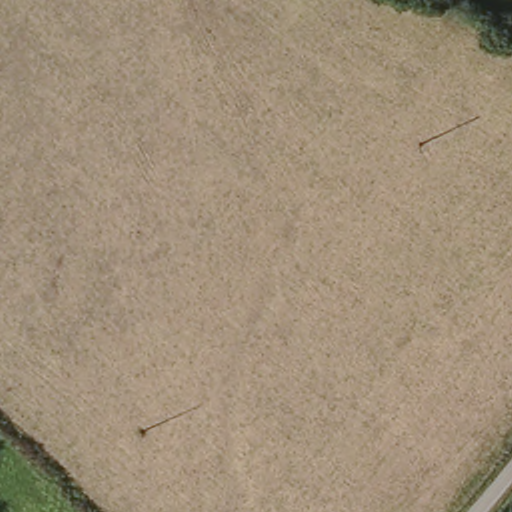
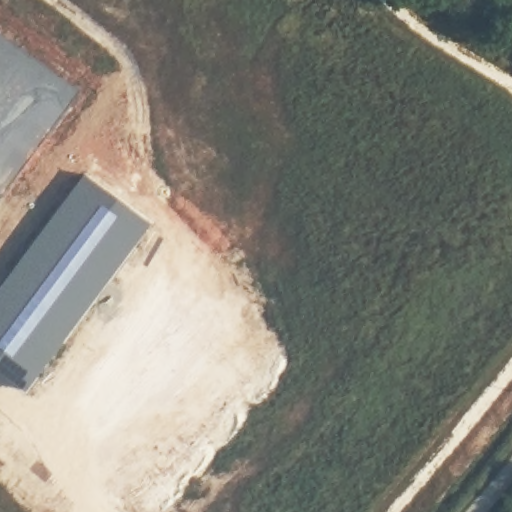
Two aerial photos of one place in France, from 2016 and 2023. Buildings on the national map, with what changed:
new [(84,171),(137,219),(16,381),(0,367),(0,281),(84,171)]

